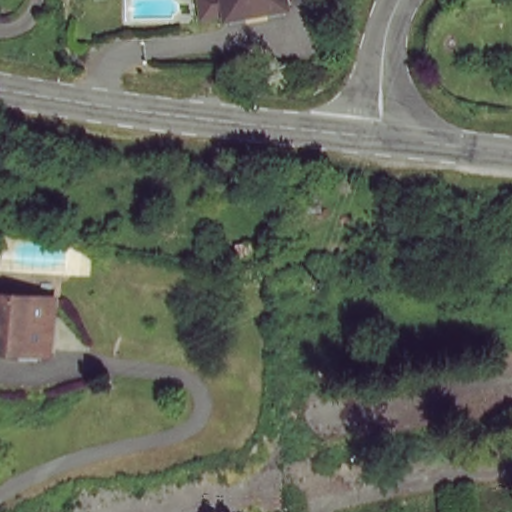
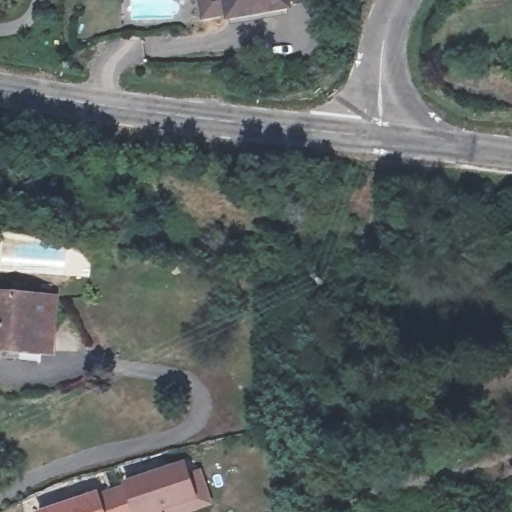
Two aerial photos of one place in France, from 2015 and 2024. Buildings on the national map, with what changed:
unchanged [(228,22),(227,18),(203,21),(199,0),(286,0),(288,14),(228,22)]
unchanged [(294,13),(292,0),(322,0),(323,9),(294,13)]
unchanged [(0,347),(0,297),(54,302),(50,352),(0,347)]
new [(186,473),(198,469),(209,501),(178,512),(43,512),(96,494),(97,496),(126,485),(125,483),(183,463),(194,496),(186,473)]

